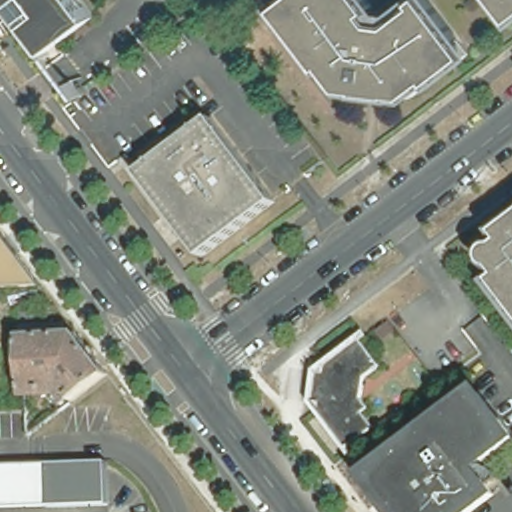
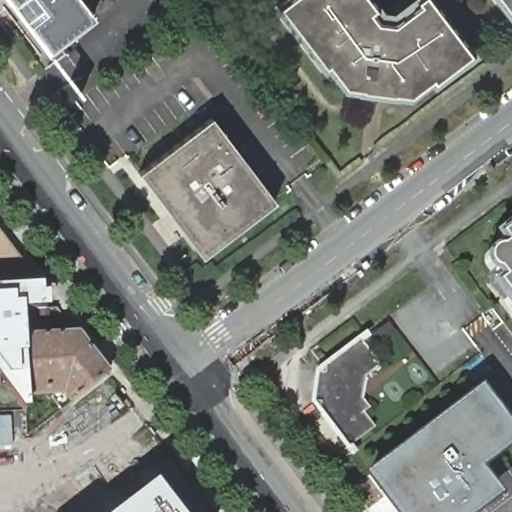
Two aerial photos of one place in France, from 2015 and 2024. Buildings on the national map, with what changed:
unchanged [(51,53),(12,0),(85,0),(98,17),(51,53)]
unchanged [(370,0),(378,11),(372,16),(380,26),(396,29),(423,9),(419,4),(424,0),(430,0),(474,58),(418,101),(342,91),(281,11),(295,0),(370,0)]
unchanged [(512,0),(512,24),(494,0),(512,0)]
unchanged [(210,118),(274,202),(201,258),(137,174),(210,118)]
unchanged [(512,231),(512,239),(508,234),(512,231)]
unchanged [(39,285),(0,287),(0,233),(39,285)]
unchanged [(503,285),(511,279),(506,272),(505,272),(504,272),(503,272),(503,271),(502,271),(501,271),(501,270),(500,270),(500,269),(499,269),(498,268),(498,267),(497,267),(497,266),(496,265),(496,264),(495,263),(495,262),(495,261),(495,260),(495,259),(495,258),(495,257),(495,256),(495,255),(496,254),(496,253),(496,252),(497,252),(497,251),(498,250),(498,249),(499,249),(499,248),(500,248),(501,247),(502,247),(502,246),(503,246),(504,246),(505,245),(506,245),(507,245),(508,245),(509,245),(510,245),(512,243),(512,296),(507,291),(503,285)]
new [(24,408),(18,409),(0,382),(0,287),(39,285),(39,292),(45,292),(46,309),(19,310),(20,337),(23,392),(24,408)]
unchanged [(71,401),(60,390),(53,391),(23,392),(20,337),(76,333),(106,373),(71,401)]
unchanged [(385,361),(369,373),(366,394),(368,408),(373,404),(379,423),(352,444),(321,404),(323,398),(316,397),(320,366),(327,367),(328,363),(364,334),(385,361)]
unchanged [(512,432),(512,433),(472,463),(492,490),(463,512),(399,512),(368,471),(477,388),(512,432)]
new [(11,417),(12,446),(0,446),(0,417),(11,417)]
demolished [(108,460),(110,503),(78,506),(78,512),(17,512),(17,508),(0,509),(0,464),(108,460)]
new [(151,483),(173,512),(113,512),(151,483)]

